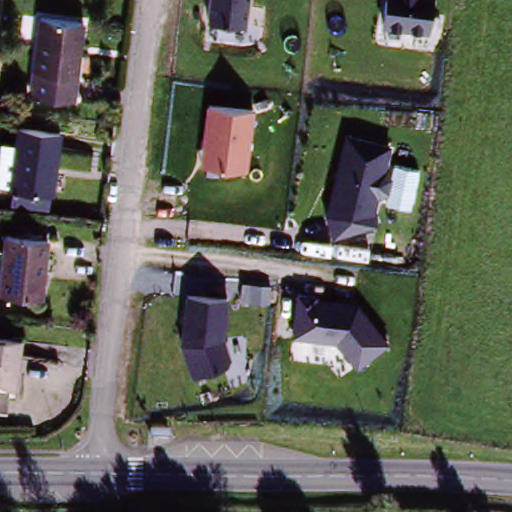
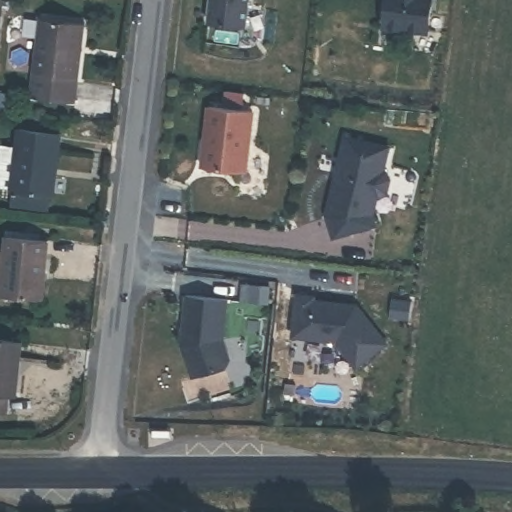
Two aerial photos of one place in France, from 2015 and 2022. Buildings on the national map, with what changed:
unchanged [(208,24),(211,0),(249,0),(246,29),(208,24)]
unchanged [(382,31),(385,0),(433,0),(431,35),(382,31)]
unchanged [(38,19),(80,24),(72,100),(29,95),(38,19)]
unchanged [(256,111),(251,173),(201,169),(205,107),(256,111)]
unchanged [(9,205),(10,191),(0,190),(0,150),(11,151),(14,133),(54,138),(47,195),(44,210),(9,205)]
unchanged [(391,145),(386,168),(392,178),(389,194),(377,196),(375,214),(379,225),(332,236),(327,218),(344,136),(391,145)]
unchanged [(44,293),(5,289),(10,239),(49,243),(44,293)]
unchanged [(231,297),(226,340),(232,359),(224,372),(191,380),(180,350),(185,292),(231,297)]
unchanged [(319,296),(318,300),(355,301),(386,344),(353,367),(333,341),(293,338),(294,295),(319,296)]
unchanged [(19,347),(14,399),(0,398),(0,345),(19,347)]

